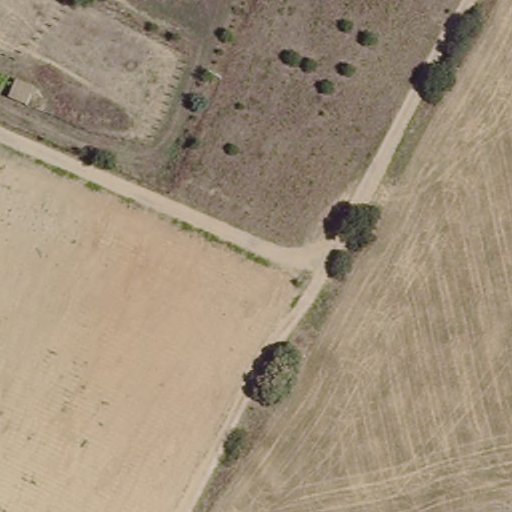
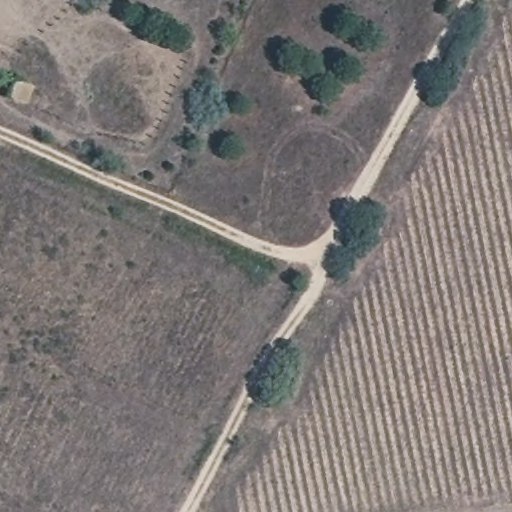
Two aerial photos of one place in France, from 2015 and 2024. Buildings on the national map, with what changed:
unchanged [(38,104),(21,96),(28,79),(46,86),(38,104)]

